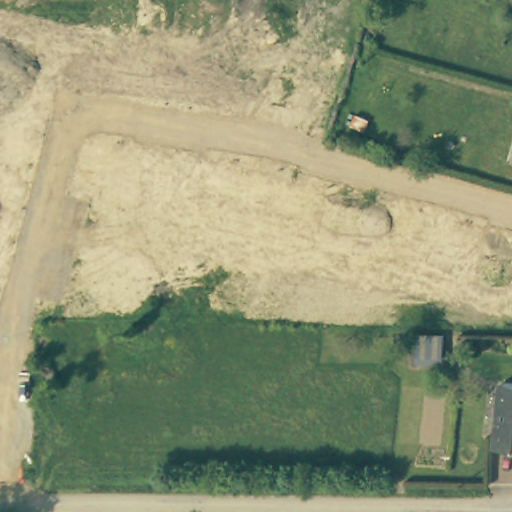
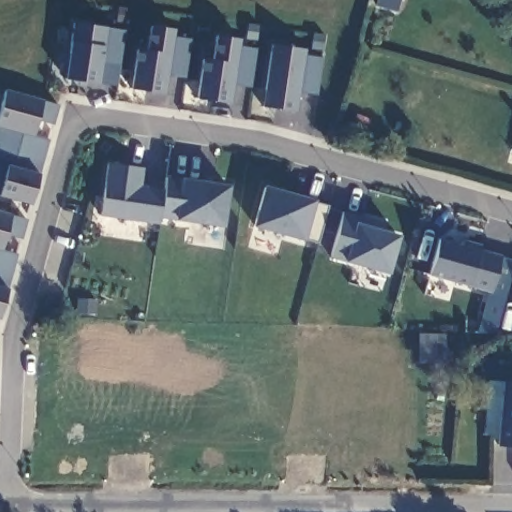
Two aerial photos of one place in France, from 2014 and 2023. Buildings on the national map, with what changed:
new [(119,63),(100,61),(97,82),(63,78),(68,41),(71,23),(124,29),(119,63)]
new [(183,75),(165,74),(162,91),(129,87),(135,46),(146,47),(149,24),(173,28),(171,36),(190,38),(183,75)]
new [(249,85),(230,83),(227,102),(193,98),(199,59),(209,60),(213,36),(239,39),(238,45),(256,47),(249,85)]
new [(316,93),(298,91),(295,108),(262,105),(270,44),(304,49),(303,55),(322,57),(316,93)]
new [(39,172),(30,202),(0,195),(0,100),(3,91),(43,100),(58,103),(53,123),(37,117),(33,134),(47,138),(39,172)]
new [(222,227),(174,220),(158,217),(156,224),(99,216),(104,162),(142,167),(140,185),(163,188),(163,175),(181,178),(230,184),(222,227)]
new [(302,240),(301,242),(250,228),(262,183),(314,198),(313,203),(326,206),(316,242),(302,240)]
new [(385,222),(383,230),(399,234),(389,273),(344,262),(329,258),(342,211),(385,222)]
new [(21,236),(5,233),(1,252),(14,255),(5,288),(0,306),(0,213),(10,216),(25,219),(21,236)]
new [(436,238),(461,243),(462,239),(479,244),(478,250),(500,255),(490,291),(425,273),(436,238)]
unchanged [(444,363),(412,361),(416,336),(447,339),(444,363)]
unchanged [(502,383),(512,384),(512,449),(497,448),(502,383)]

